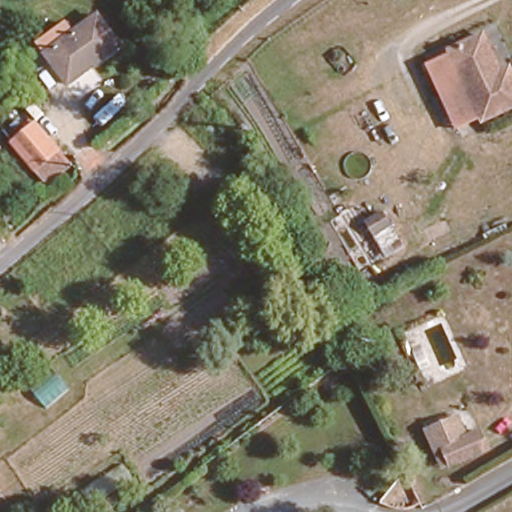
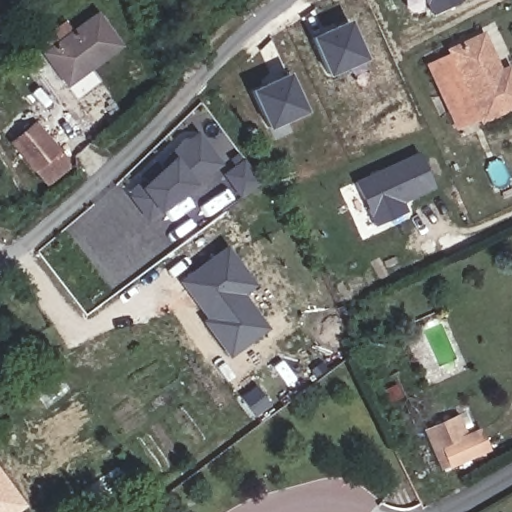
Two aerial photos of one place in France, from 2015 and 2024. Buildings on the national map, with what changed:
new [(461,1),(432,15),(425,0),(461,0),(461,1)]
unchanged [(120,44),(69,82),(47,52),(97,14),(120,44)]
new [(365,59),(328,75),(311,36),(348,22),(365,59)]
unchanged [(481,37),(498,73),(508,69),(512,77),(512,108),(481,122),(448,51),(481,37)]
unchanged [(481,122),(457,133),(425,63),(448,51),(481,122)]
new [(287,75),(306,110),(266,127),(250,92),(287,75)]
unchanged [(50,188),(36,175),(9,142),(3,134),(10,128),(0,112),(0,110),(24,96),(41,120),(40,123),(60,151),(58,155),(71,169),(50,188)]
new [(142,187),(140,185),(175,156),(187,145),(209,173),(195,186),(158,212),(145,221),(129,197),(142,187)]
new [(403,203),(406,212),(375,226),(354,181),(418,152),(435,189),(403,203)]
new [(240,163),(256,185),(240,197),(224,175),(240,163)]
new [(230,359),(201,321),(205,318),(176,281),(212,254),(226,244),(257,284),(243,295),(269,329),(230,359)]
unchanged [(433,438),(441,435),(459,427),(465,425),(473,443),(487,437),(496,456),(458,472),(450,476),(433,438)]
new [(0,512),(0,469),(27,506),(19,512),(0,512)]
unchanged [(47,512),(59,504),(65,512),(47,512)]

